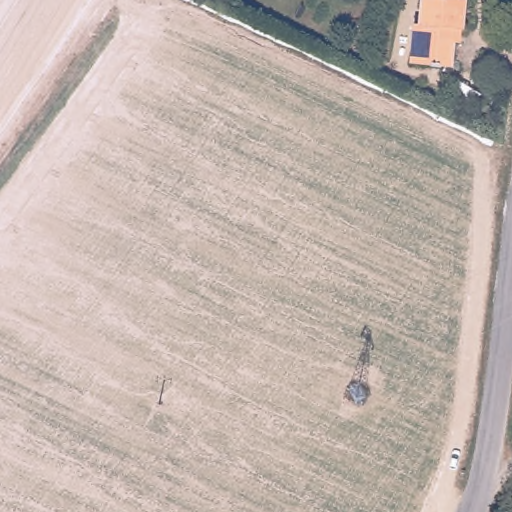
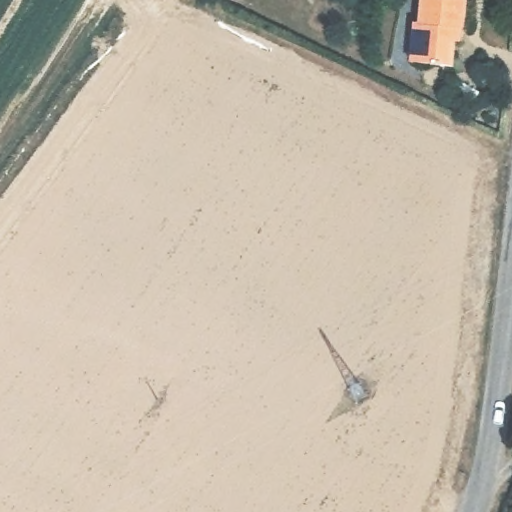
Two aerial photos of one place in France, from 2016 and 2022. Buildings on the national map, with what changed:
unchanged [(471,27),(463,26),(458,67),(409,62),(413,22),(418,22),(421,0),(475,0),(471,27)]

